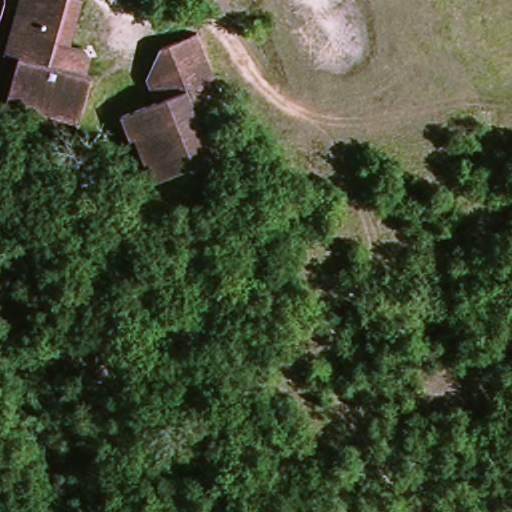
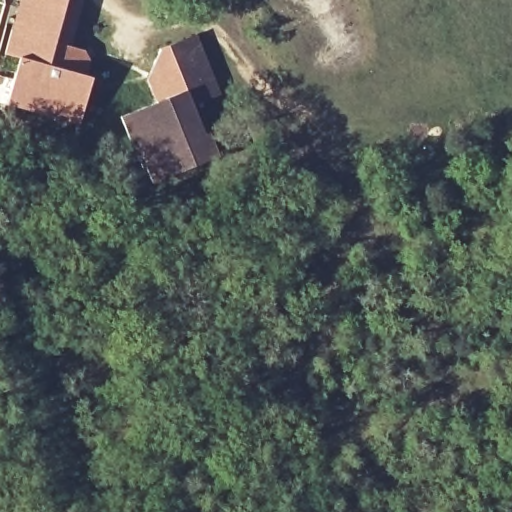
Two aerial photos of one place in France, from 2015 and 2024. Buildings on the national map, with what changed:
unchanged [(92,62),(90,120),(15,115),(19,60),(11,59),(16,1),(67,5),(81,7),(77,52),(87,52),(92,62)]
unchanged [(189,33),(218,88),(199,103),(222,151),(162,185),(139,144),(130,149),(119,126),(154,106),(140,81),(148,66),(155,54),(189,33)]

